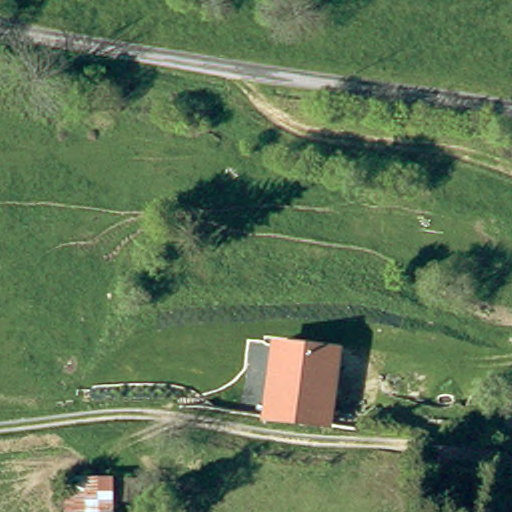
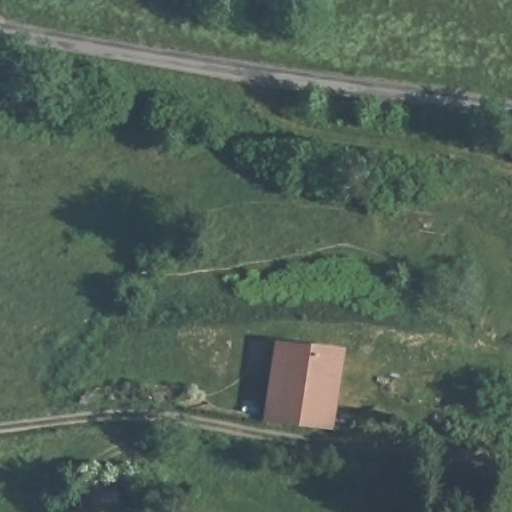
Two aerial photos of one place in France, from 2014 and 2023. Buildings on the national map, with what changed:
unchanged [(345,347),(333,431),(267,421),(277,340),(345,347)]
unchanged [(68,512),(68,491),(121,493),(121,512),(68,512)]

